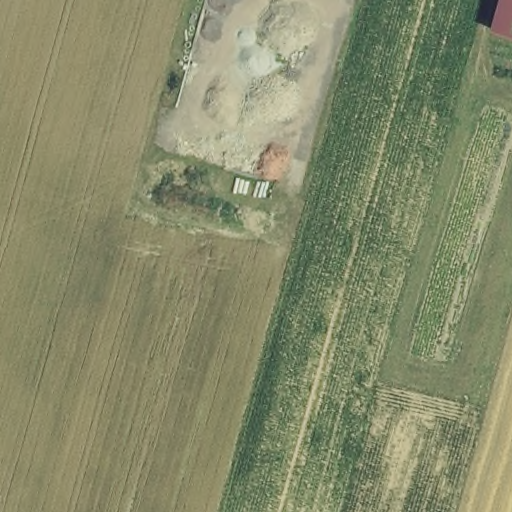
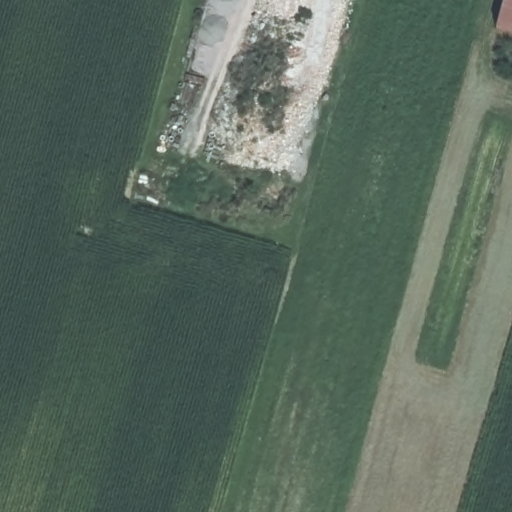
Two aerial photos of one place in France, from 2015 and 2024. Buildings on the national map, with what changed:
unchanged [(498,25),(505,0),(512,0),(512,29),(498,25)]

